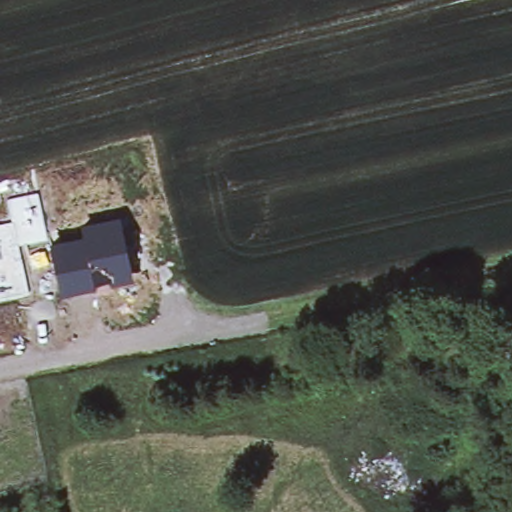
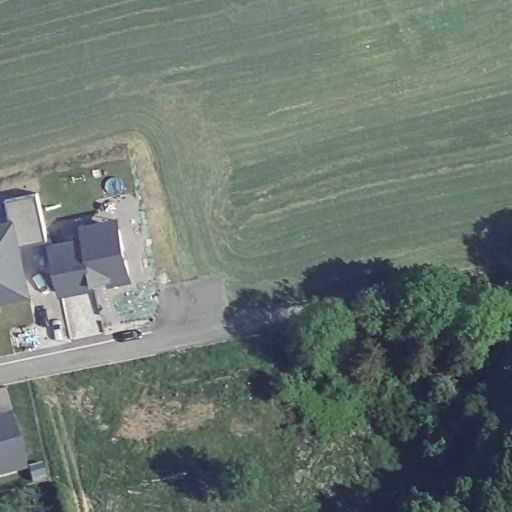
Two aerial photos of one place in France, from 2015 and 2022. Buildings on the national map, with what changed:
unchanged [(8,195),(40,188),(50,236),(21,242),(30,292),(0,300),(0,222),(14,219),(8,195)]
unchanged [(50,242),(83,234),(81,222),(122,215),(133,280),(60,293),(50,242)]
new [(0,476),(0,416),(11,412),(27,469),(0,476)]

